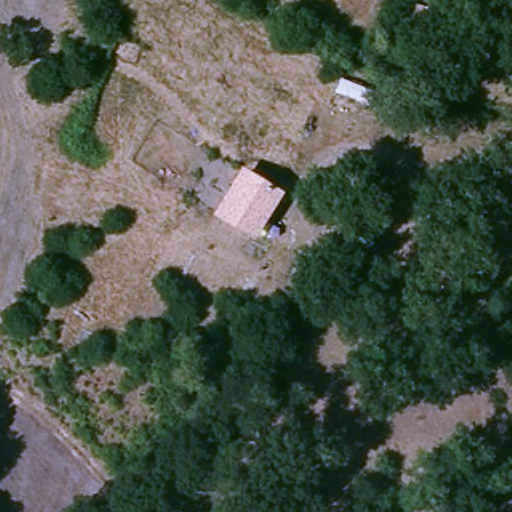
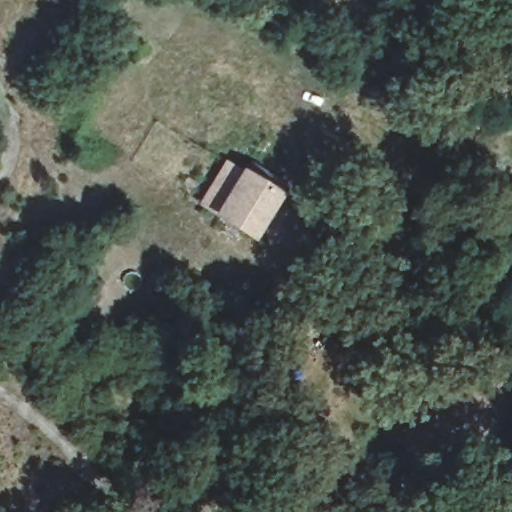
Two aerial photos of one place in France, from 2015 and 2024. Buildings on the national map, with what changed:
unchanged [(437,15),(427,39),(408,32),(417,7),(437,15)]
unchanged [(248,233),(216,213),(201,204),(226,166),(240,175),(273,194),(248,233)]

